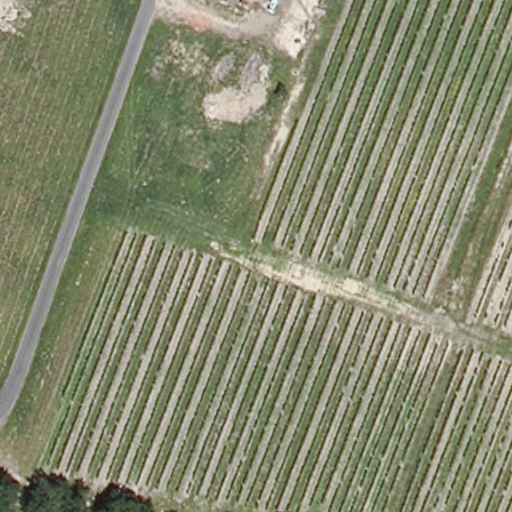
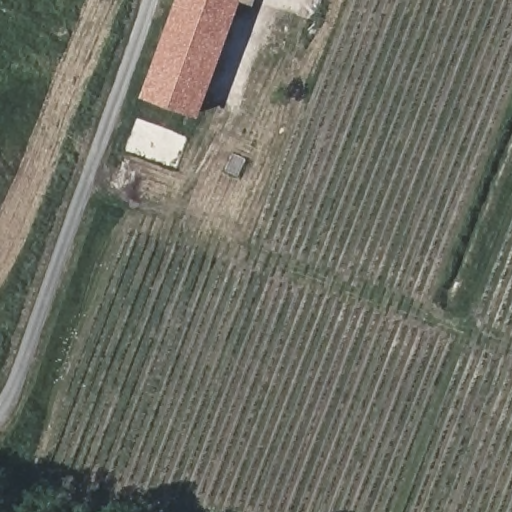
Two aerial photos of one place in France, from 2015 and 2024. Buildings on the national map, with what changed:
new [(199,117),(140,96),(177,0),(240,0),(199,117)]
unchanged [(264,3),(257,0),(265,0),(264,3)]

